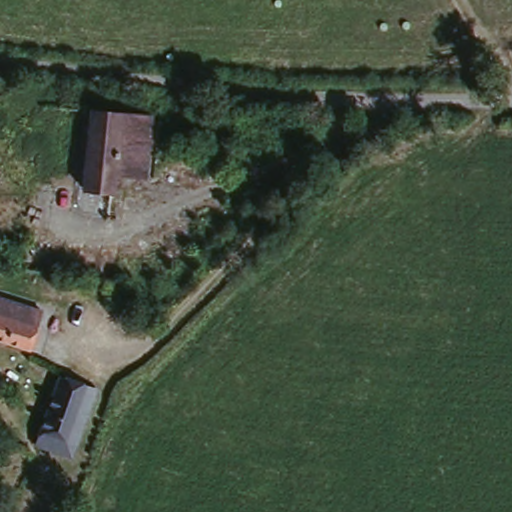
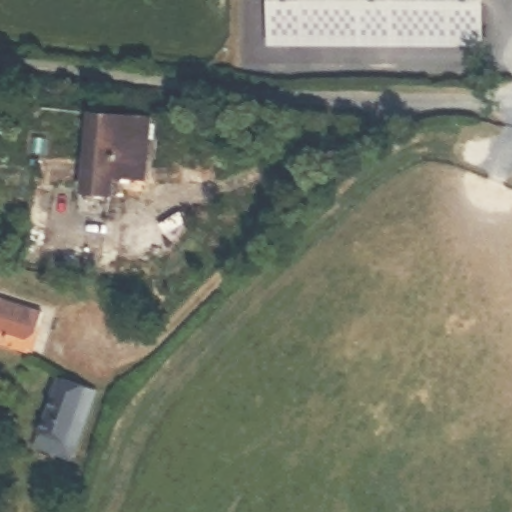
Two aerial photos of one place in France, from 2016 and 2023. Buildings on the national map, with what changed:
new [(271,43),(270,0),(480,0),(481,40),(271,43)]
demolished [(22,152),(0,150),(0,106),(26,109),(22,152)]
unchanged [(150,119),(147,177),(119,176),(117,190),(87,187),(90,112),(150,119)]
unchanged [(42,317),(27,354),(0,343),(0,301),(42,317)]
unchanged [(93,393),(79,434),(69,430),(61,450),(36,440),(57,380),(93,393)]

